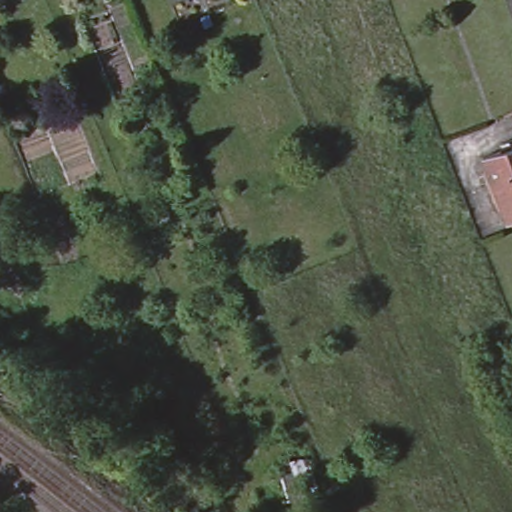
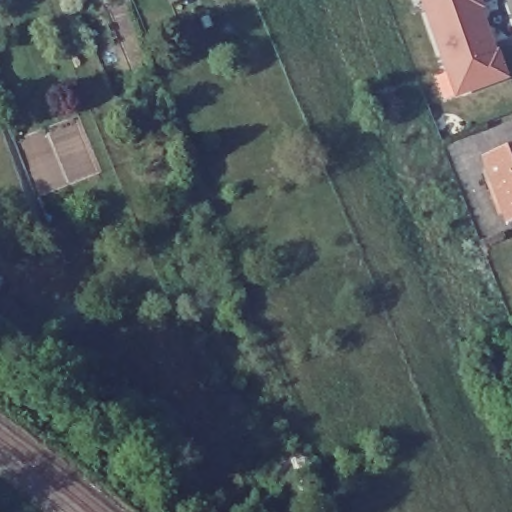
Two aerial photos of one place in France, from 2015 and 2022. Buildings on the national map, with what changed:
new [(446,75),(423,0),(478,0),(481,10),(480,10),(490,41),(487,42),(491,56),(497,54),(506,81),(461,95),(454,97),(446,75)]
unchanged [(476,161),(512,148),(512,222),(500,226),(476,161)]

